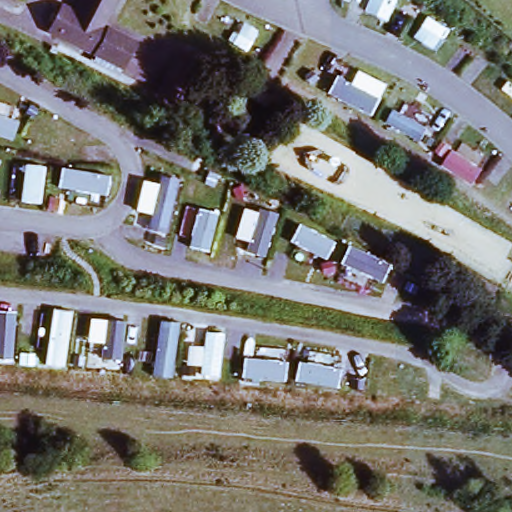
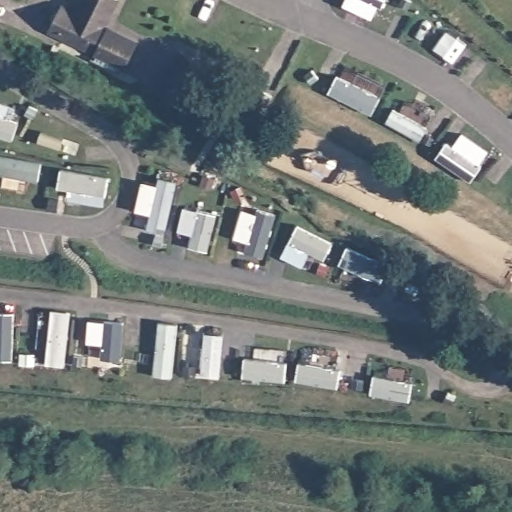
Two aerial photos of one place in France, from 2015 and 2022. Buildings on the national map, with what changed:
unchanged [(50,32),(62,6),(75,13),(82,0),(117,0),(103,27),(136,44),(124,69),(50,32)]
unchanged [(151,90),(174,46),(205,61),(182,106),(151,90)]
unchanged [(265,110),(243,96),(250,86),(271,99),(265,110)]

